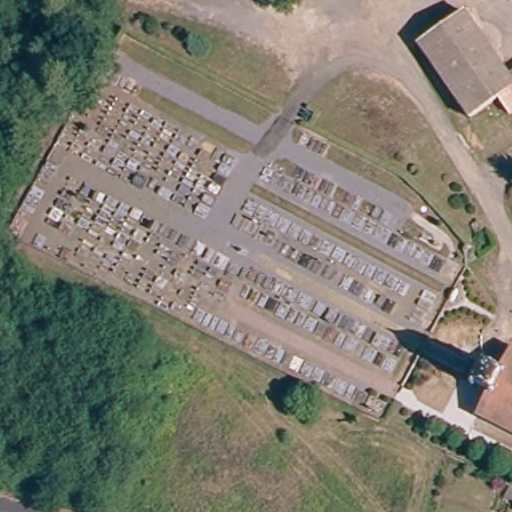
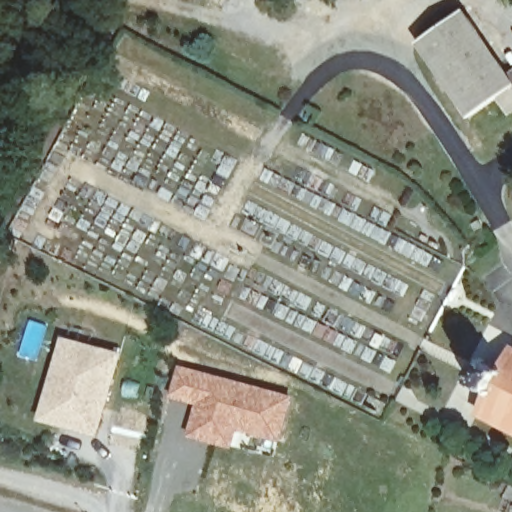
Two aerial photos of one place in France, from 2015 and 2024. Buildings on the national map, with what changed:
unchanged [(465,10),(512,73),(512,87),(472,113),(471,114),(420,43),(427,37),(465,10)]
new [(39,421),(61,337),(122,353),(100,437),(39,421)]
unchanged [(481,415),(486,403),(467,392),(489,357),(506,367),(512,355),(512,432),(481,415)]
new [(175,363),(293,395),(280,443),(237,433),(232,450),(185,437),(193,406),(166,398),(175,363)]
unchanged [(392,403),(384,417),(374,412),(372,411),(381,396),(392,403)]

